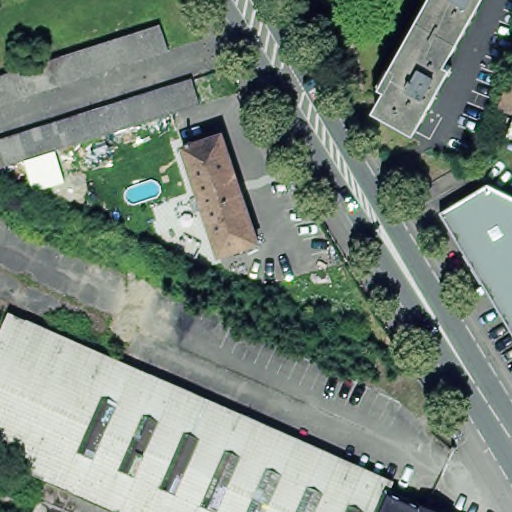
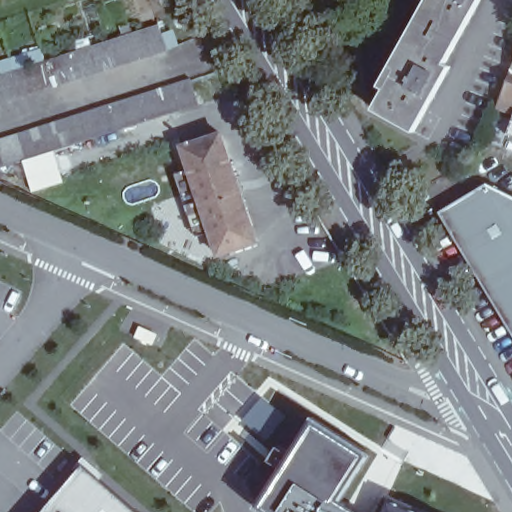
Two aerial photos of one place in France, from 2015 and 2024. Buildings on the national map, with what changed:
unchanged [(457,42),(417,19),(428,0),(481,0),(457,42)]
unchanged [(445,64),(450,67),(414,132),(374,110),(408,48),(402,46),(417,19),(457,42),(445,64)]
unchanged [(7,78),(20,74),(32,70),(45,66),(57,62),(70,58),(83,54),(95,50),(108,46),(120,42),(133,38),(145,34),(159,30),(167,55),(155,59),(142,63),(130,67),(117,71),(104,75),(92,79),(79,83),(67,87),(54,91),(41,95),(29,99),(16,103),(4,107),(0,108),(0,80),(7,78)]
unchanged [(512,66),(512,112),(497,106),(512,66)]
unchanged [(9,140),(22,136),(35,132),(47,128),(60,124),(72,120),(85,116),(97,112),(110,108),(122,104),(135,100),(148,96),(160,92),(173,88),(186,84),(194,110),(184,113),(181,114),(169,118),(156,122),(143,126),(131,130),(118,134),(105,138),(93,142),(80,146),(67,150),(55,154),(42,158),(30,162),(17,166),(5,170),(0,171),(0,143),(9,140)]
unchanged [(512,122),(512,137),(507,135),(512,122)]
unchanged [(182,147),(188,145),(187,142),(190,141),(190,144),(221,134),(257,242),(218,255),(182,147)]
unchanged [(512,337),(440,217),(487,189),(512,202),(512,337)]
demolished [(122,230),(130,201),(145,206),(135,236),(122,230)]
demolished [(390,481),(378,512),(34,512),(48,484),(0,462),(0,345),(12,318),(390,481)]
new [(335,500),(353,512),(260,512),(252,507),(307,419),(364,453),(335,500)]
new [(141,512),(41,512),(84,463),(141,512)]
unchanged [(411,512),(385,512),(389,502),(411,512)]

